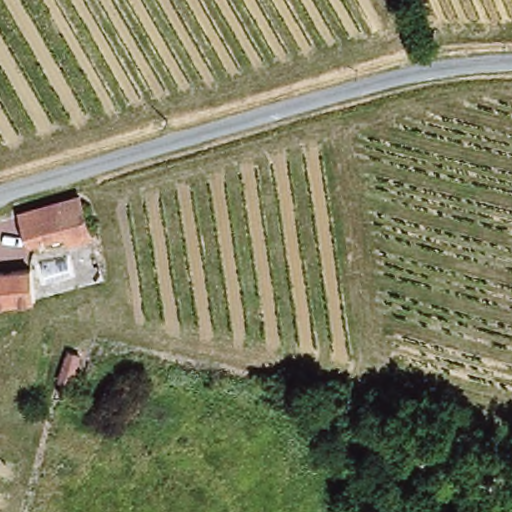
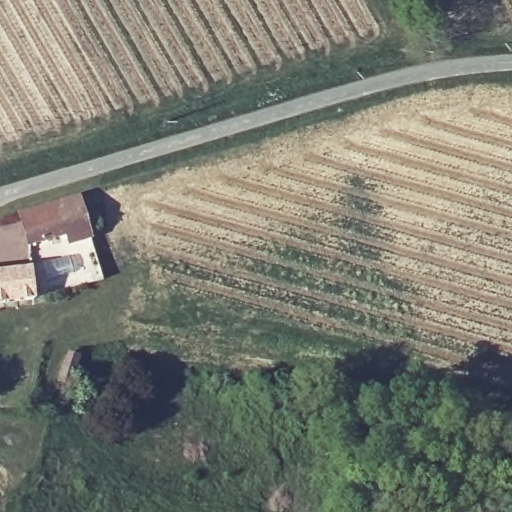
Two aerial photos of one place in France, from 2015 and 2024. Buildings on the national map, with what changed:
unchanged [(81,292),(35,302),(0,307),(0,272),(40,268),(27,210),(81,194),(105,290),(81,292)]
unchanged [(61,392),(68,364),(79,367),(71,395),(61,392)]

